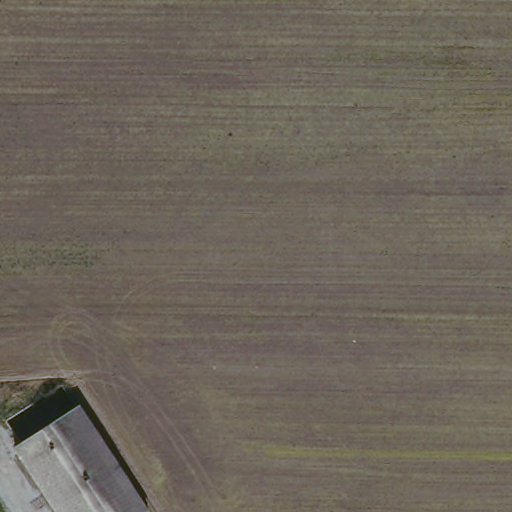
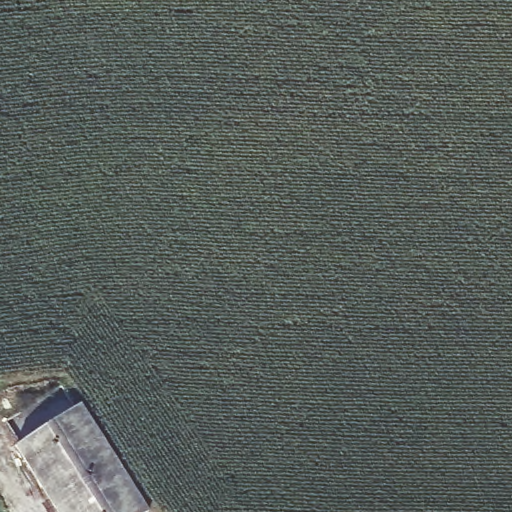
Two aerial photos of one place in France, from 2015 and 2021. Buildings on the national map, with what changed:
unchanged [(62,512),(19,442),(83,403),(148,511),(146,512),(62,512)]

